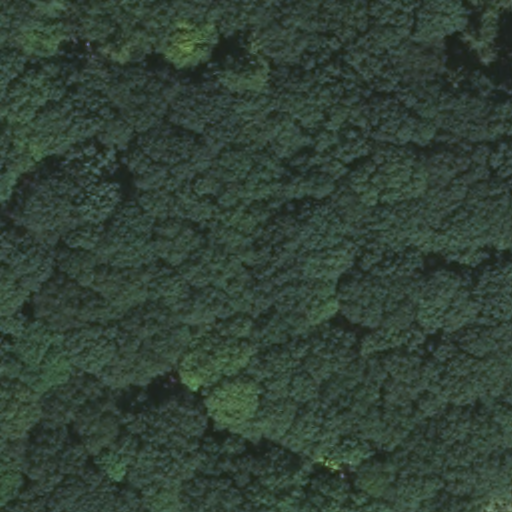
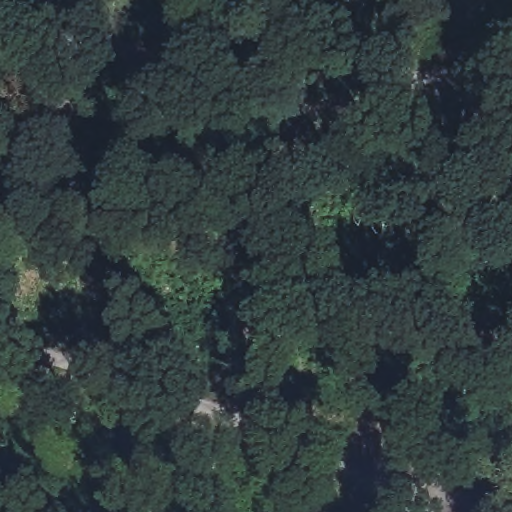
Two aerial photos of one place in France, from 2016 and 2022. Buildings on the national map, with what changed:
[]

